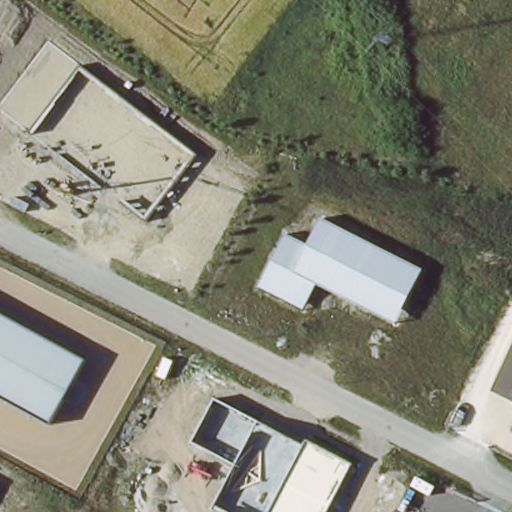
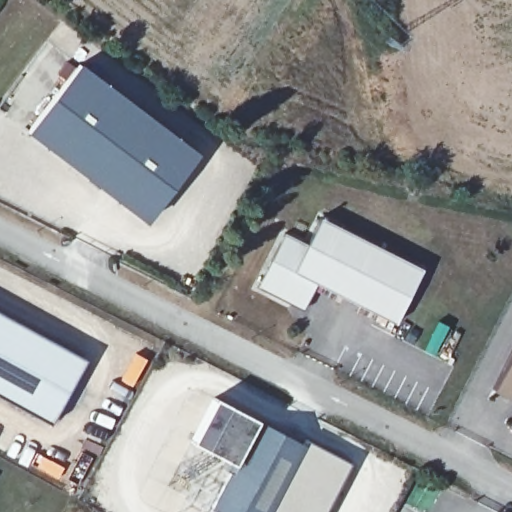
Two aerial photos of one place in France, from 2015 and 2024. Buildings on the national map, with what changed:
new [(189,151),(140,216),(22,127),(72,61),(189,151)]
unchanged [(394,322),(315,285),(302,308),(258,286),(285,234),(307,244),(320,219),(421,268),(394,322)]
unchanged [(50,422),(0,395),(0,311),(85,358),(50,422)]
unchanged [(493,390),(512,352),(512,400),(493,390)]
unchanged [(215,512),(211,510),(235,464),(192,441),(214,399),(303,445),(307,439),(351,465),(326,512),(215,512)]

